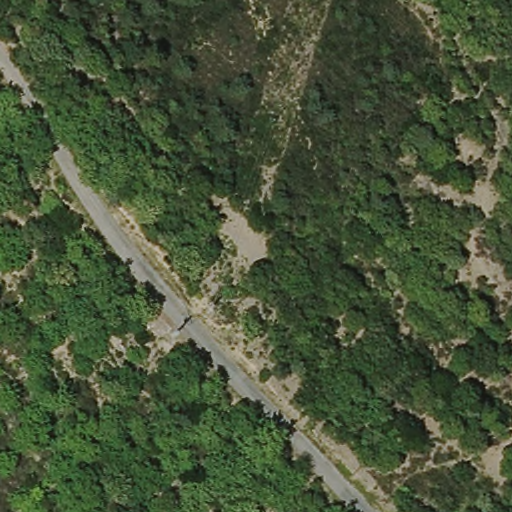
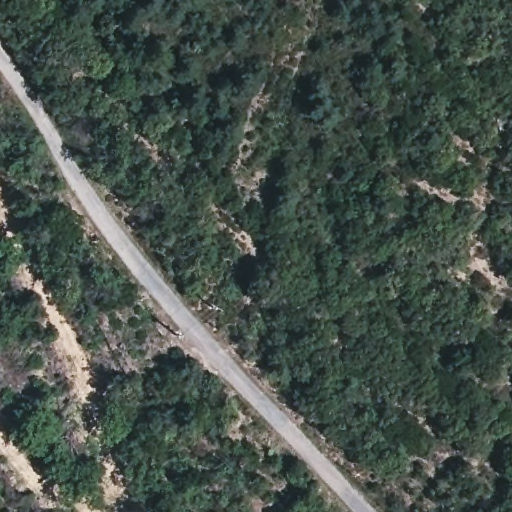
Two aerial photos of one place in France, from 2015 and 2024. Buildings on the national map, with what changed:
unchanged [(141,318),(153,308),(164,321),(152,330),(141,318)]

